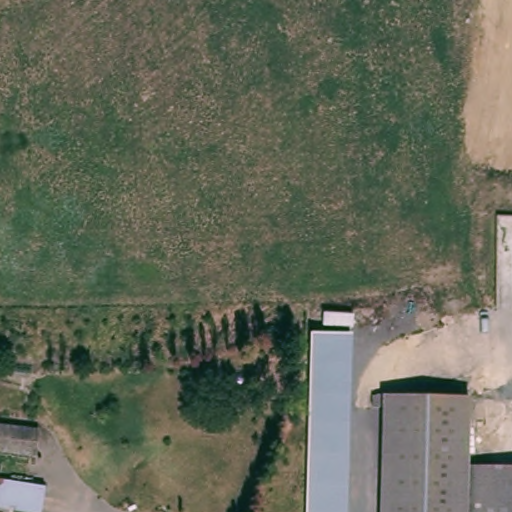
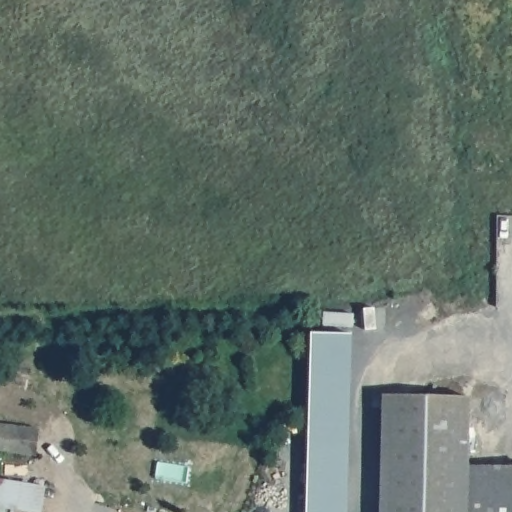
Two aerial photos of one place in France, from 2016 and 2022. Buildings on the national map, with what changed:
unchanged [(308,332),(354,332),(350,512),(303,512),(308,332)]
unchanged [(382,396),(467,396),(467,463),(512,463),(512,512),(378,512),(382,396)]
unchanged [(32,459),(0,453),(0,428),(38,433),(32,459)]
unchanged [(47,491),(43,512),(14,512),(0,509),(0,496),(2,483),(47,491)]

